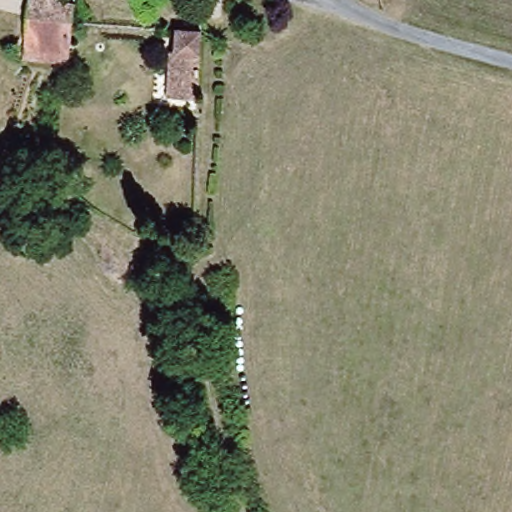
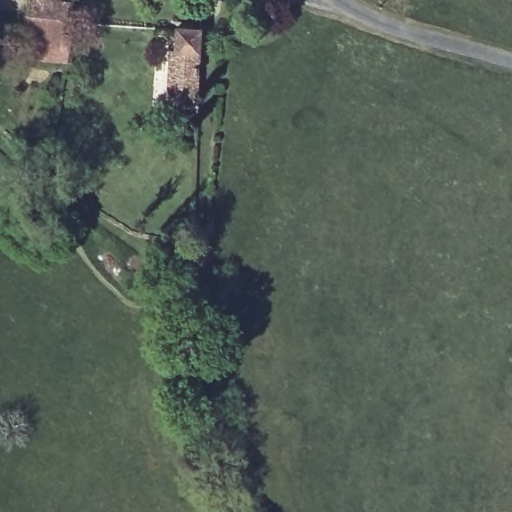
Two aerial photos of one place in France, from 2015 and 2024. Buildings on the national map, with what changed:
unchanged [(62,0),(62,1),(79,2),(75,22),(32,18),(33,0),(62,0)]
unchanged [(71,65),(27,61),(32,18),(75,22),(71,65)]
unchanged [(200,103),(170,102),(174,58),(179,57),(180,33),(203,33),(200,103)]

